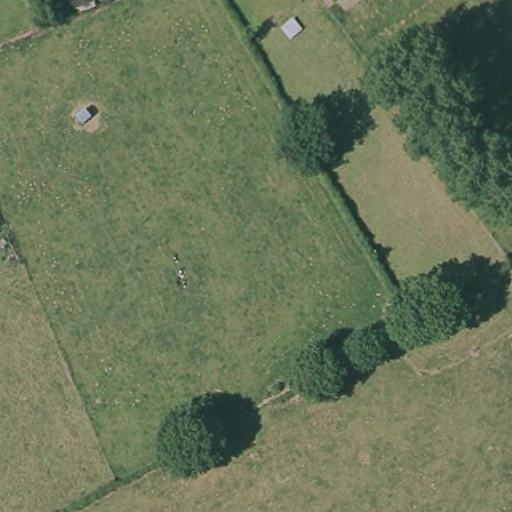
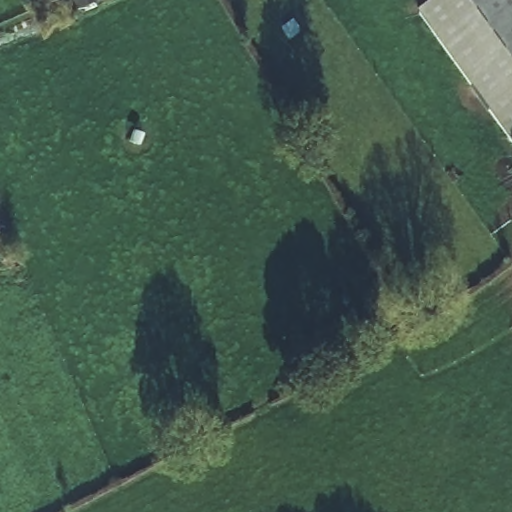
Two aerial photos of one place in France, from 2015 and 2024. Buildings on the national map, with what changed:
new [(418,13),(436,0),(512,0),(512,145),(418,13)]

